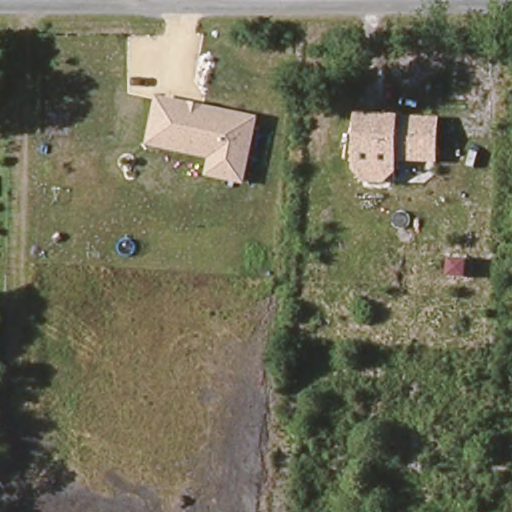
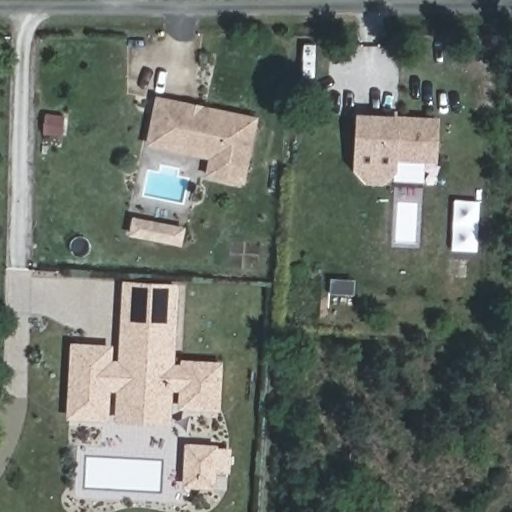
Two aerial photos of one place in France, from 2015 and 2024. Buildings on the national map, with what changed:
demolished [(410,81),(411,95),(392,96),(389,51),(443,50),(445,81),(410,81)]
unchanged [(259,118),(246,186),(206,178),(209,160),(146,148),(157,96),(259,118)]
unchanged [(401,116),(440,119),(438,163),(399,161),(398,172),(384,186),(366,185),(353,171),(356,115),(401,116)]
new [(129,236),(134,216),(186,227),(182,246),(129,236)]
new [(175,365),(181,365),(181,360),(223,362),(220,414),(178,410),(179,392),(174,392),(172,425),(115,422),(116,392),(111,392),(109,421),(66,419),(70,344),(113,346),(112,361),(119,361),(123,281),(180,285),(175,365)]
new [(230,474),(217,473),(216,490),(183,487),(186,445),(232,448),(230,474)]

